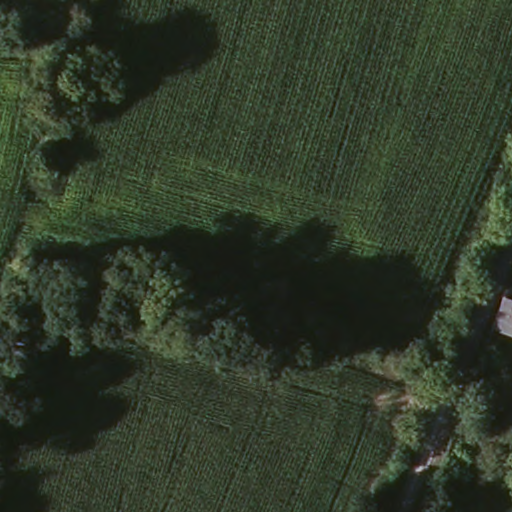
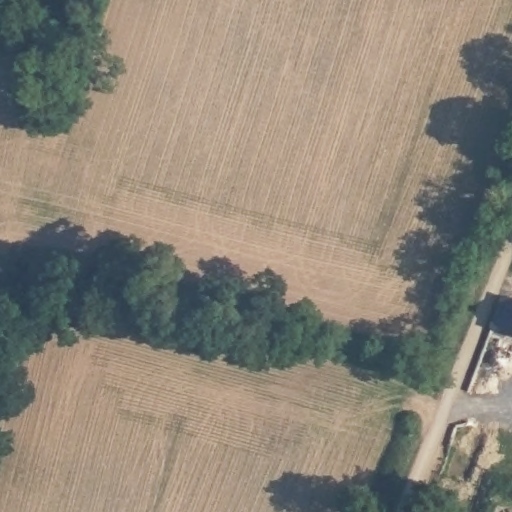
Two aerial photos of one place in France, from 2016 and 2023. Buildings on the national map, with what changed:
unchanged [(505,297),(512,299),(512,334),(492,327),(505,297)]

